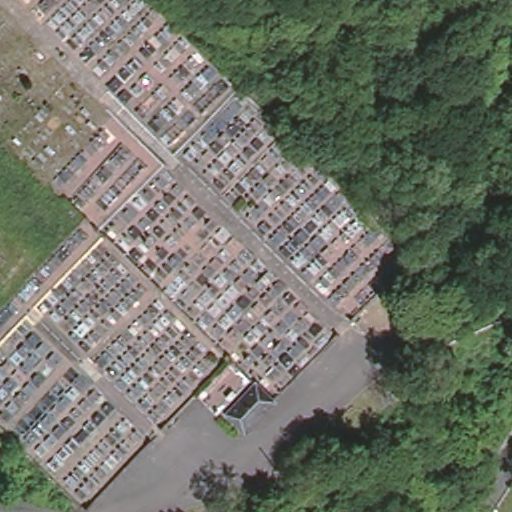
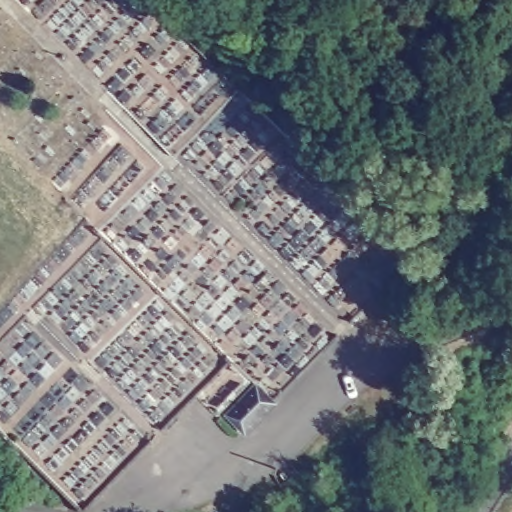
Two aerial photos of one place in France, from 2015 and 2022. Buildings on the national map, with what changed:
unchanged [(243,426),(224,410),(251,380),(271,396),(243,426)]

